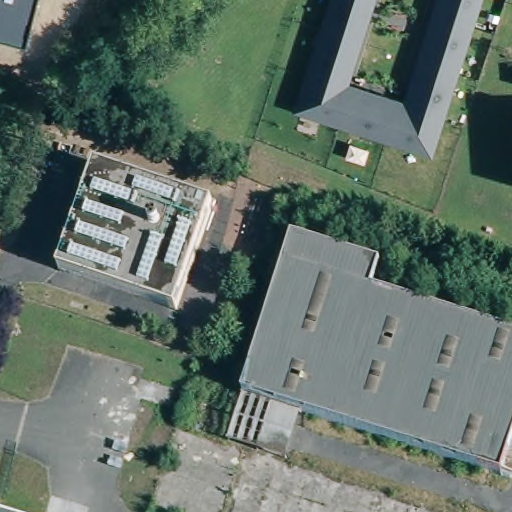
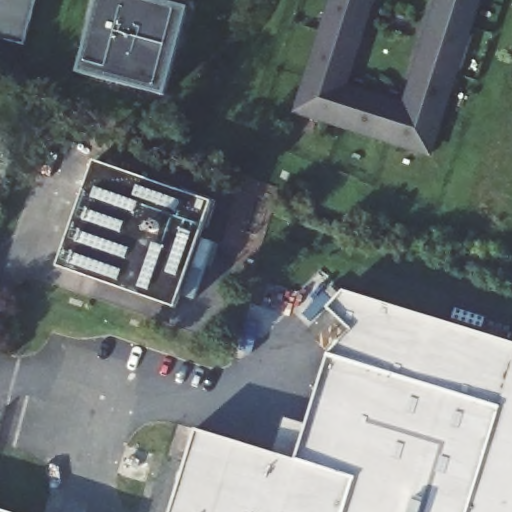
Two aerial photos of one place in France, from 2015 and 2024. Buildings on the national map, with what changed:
unchanged [(0,42),(0,0),(36,0),(23,48),(0,42)]
new [(75,71),(92,0),(155,0),(185,9),(163,93),(75,71)]
unchanged [(375,0),(348,84),(404,103),(437,0),(481,0),(431,161),(292,115),(329,0),(375,0)]
unchanged [(99,163),(218,204),(181,310),(63,269),(99,163)]
demolished [(243,374),(289,233),(377,261),(369,286),(512,331),(512,458),(507,475),(296,408),(253,394),(239,389),(243,374)]
new [(512,347),(512,512),(148,512),(181,434),(292,466),(329,295),(512,347)]
unchanged [(0,500),(38,512),(0,512),(0,500)]

